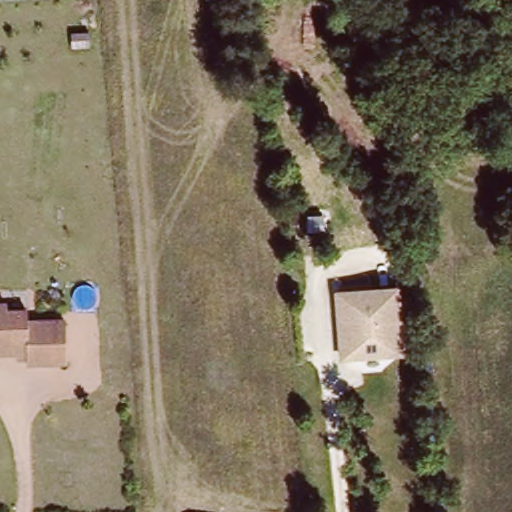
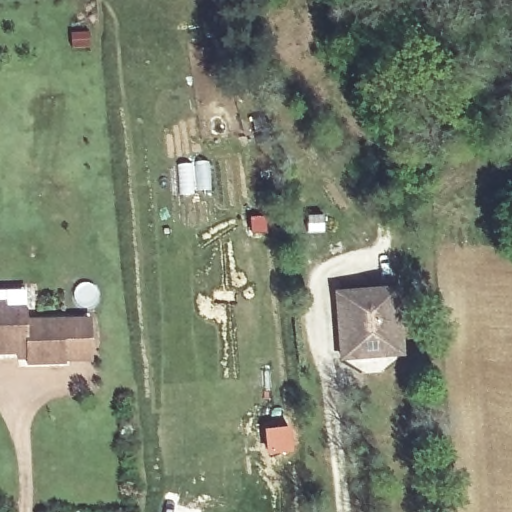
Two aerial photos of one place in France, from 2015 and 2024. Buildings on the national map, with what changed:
unchanged [(89,32),(90,49),(68,51),(69,33),(89,32)]
unchanged [(340,352),(336,294),(398,291),(400,349),(400,355),(380,356),(357,358),(340,358),(340,352)]
unchanged [(16,352),(0,351),(0,301),(7,301),(7,309),(28,309),(27,320),(66,323),(62,365),(25,363),(25,357),(15,357),(16,352)]

